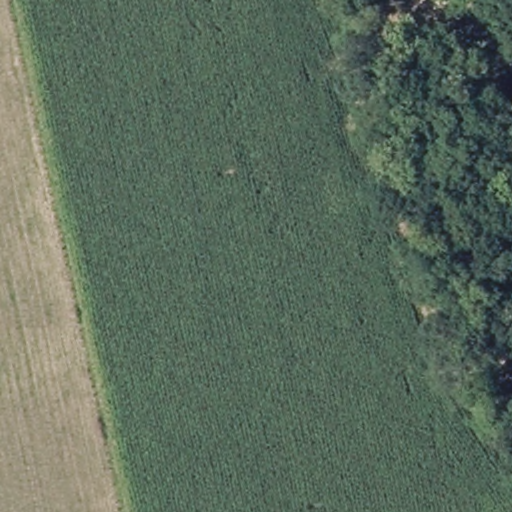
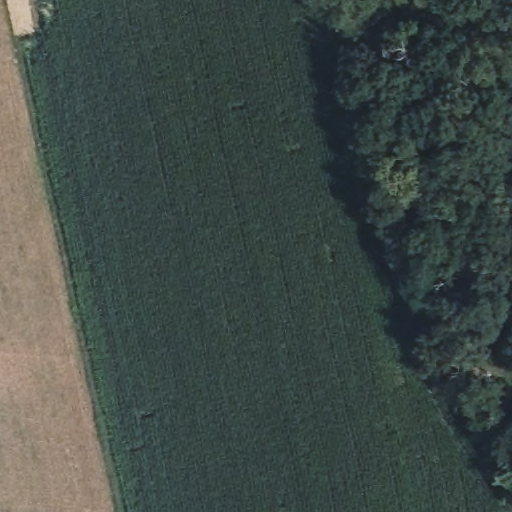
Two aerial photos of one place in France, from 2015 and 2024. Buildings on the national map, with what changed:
[]

